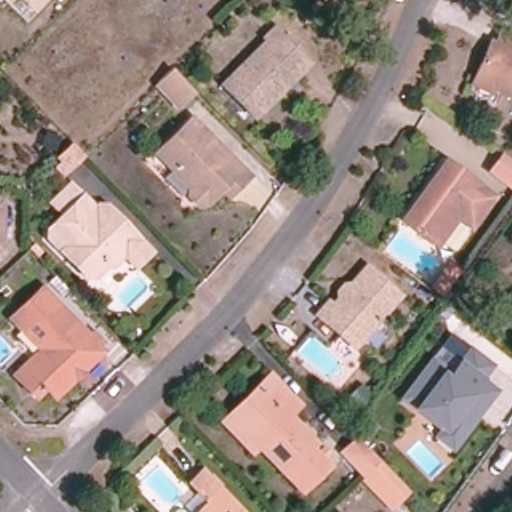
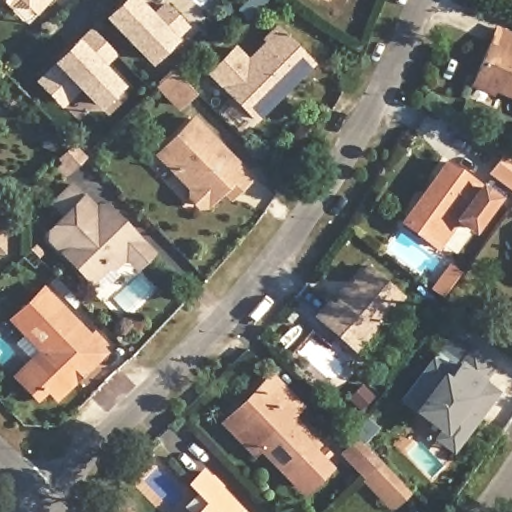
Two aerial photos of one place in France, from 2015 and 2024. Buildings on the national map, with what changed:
unchanged [(0,1),(0,0),(14,0),(6,8),(0,1)]
unchanged [(15,0),(48,0),(32,17),(15,0)]
new [(164,1),(189,27),(149,65),(103,18),(121,0),(138,0),(151,14),(164,1)]
new [(78,91),(61,108),(34,80),(89,26),(116,54),(104,66),(123,85),(96,110),(78,91)]
unchanged [(486,38),(491,40),(497,26),(512,33),(512,94),(470,75),(486,38)]
unchanged [(296,70),(300,74),(256,118),(211,73),(234,50),(253,61),(279,30),(307,59),(296,70)]
unchanged [(193,91),(179,105),(158,84),(172,70),(193,91)]
unchanged [(223,190),(208,205),(198,206),(191,199),(192,189),(174,171),(158,154),(193,119),(251,178),(238,189),(231,198),(223,190)]
unchanged [(73,146),(84,157),(71,170),(60,159),(73,146)]
unchanged [(490,172),(503,154),(512,161),(512,187),(490,172)]
unchanged [(446,163),(494,198),(474,225),(460,215),(438,247),(404,222),(446,163)]
unchanged [(118,257),(107,268),(103,264),(88,278),(80,278),(44,239),(44,230),(58,218),(47,206),(68,187),(79,199),(90,210),(94,207),(101,207),(141,250),(126,264),(118,257)]
unchanged [(360,351),(321,320),(332,307),(336,310),(346,298),(341,294),(346,288),(351,291),(368,269),(403,296),(360,351)]
unchanged [(74,379),(55,398),(45,388),(35,398),(15,377),(41,351),(11,319),(43,289),(90,338),(95,332),(104,341),(98,347),(103,352),(81,372),(75,366),(68,373),(74,379)]
unchanged [(482,379),(498,391),(451,453),(430,437),(437,428),(399,399),(449,332),(492,366),(482,379)]
unchanged [(275,463),(249,437),(243,443),(213,413),(248,379),(261,366),(289,396),(279,406),(306,434),(301,439),(319,457),(297,478),(293,482),(275,463)]
unchanged [(392,501),(367,476),(366,477),(343,454),(359,439),(382,462),(406,487),(392,501)]
unchanged [(209,504),(191,486),(204,473),(242,512),(201,512),(209,504)]

